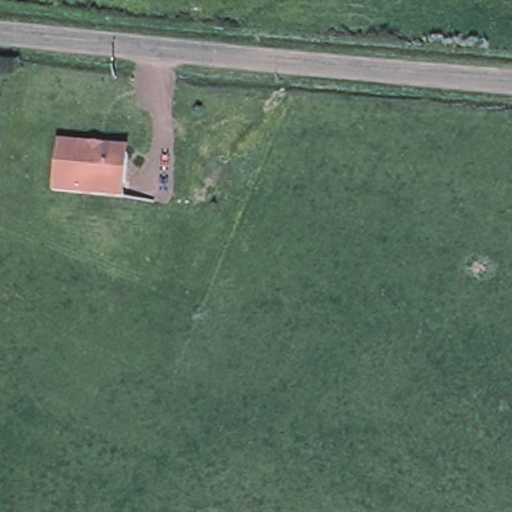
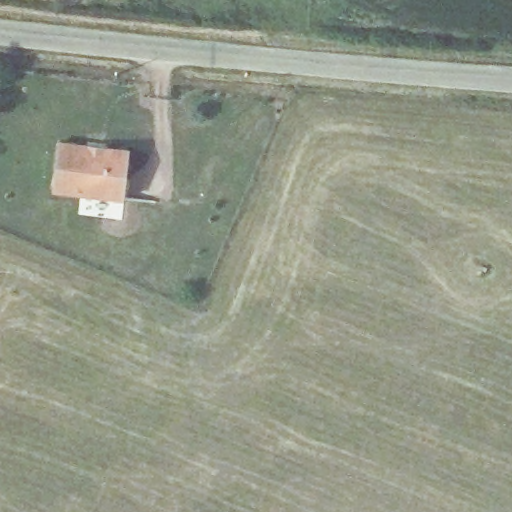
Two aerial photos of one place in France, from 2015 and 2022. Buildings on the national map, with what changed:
unchanged [(125,146),(132,154),(130,195),(57,190),(61,142),(125,146)]

